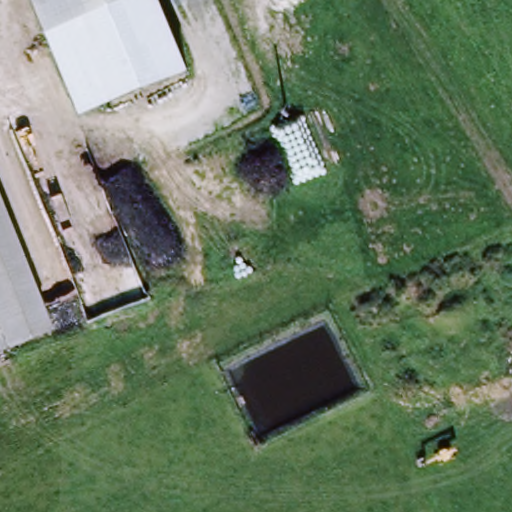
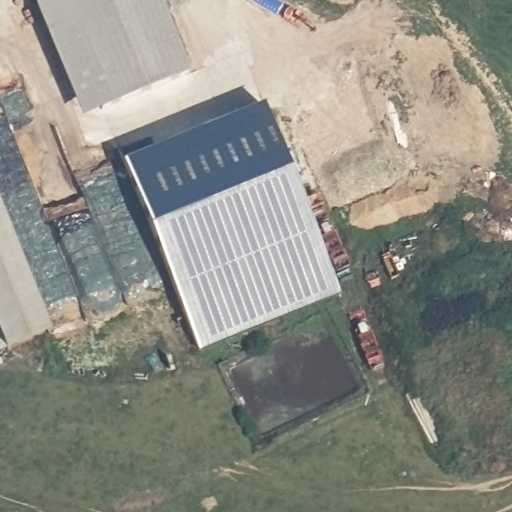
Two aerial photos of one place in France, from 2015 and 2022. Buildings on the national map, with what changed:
unchanged [(32,0),(140,0),(47,37),(32,0)]
unchanged [(159,0),(190,72),(80,115),(47,37),(140,0),(159,0)]
new [(119,152),(150,139),(155,150),(262,108),(340,296),(199,353),(119,152)]
unchanged [(4,351),(0,353),(0,193),(55,329),(4,351)]

